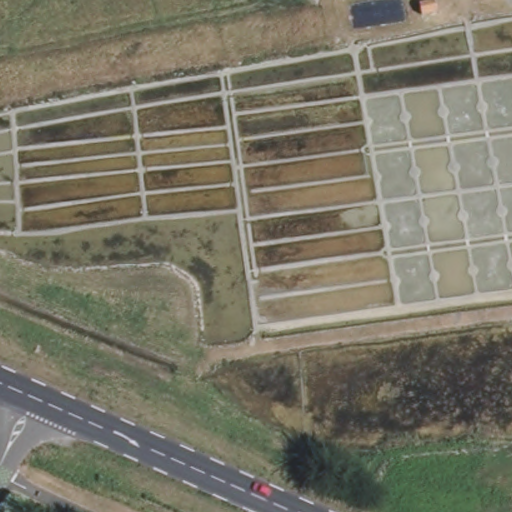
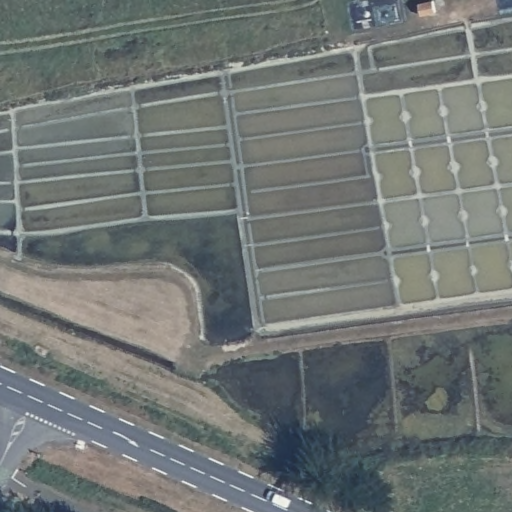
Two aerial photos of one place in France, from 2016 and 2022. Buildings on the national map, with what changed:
unchanged [(425,13),(422,2),(432,0),(437,0),(439,10),(425,13)]

